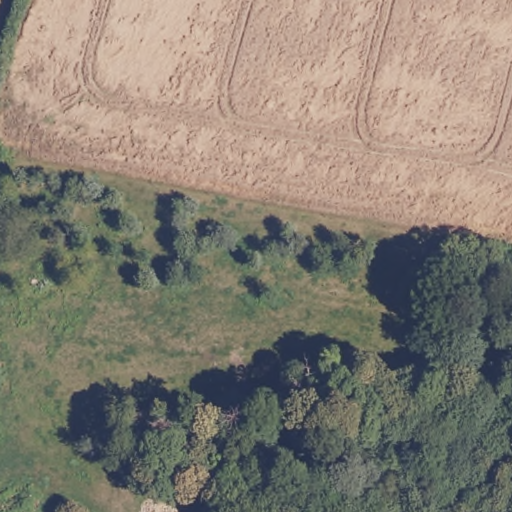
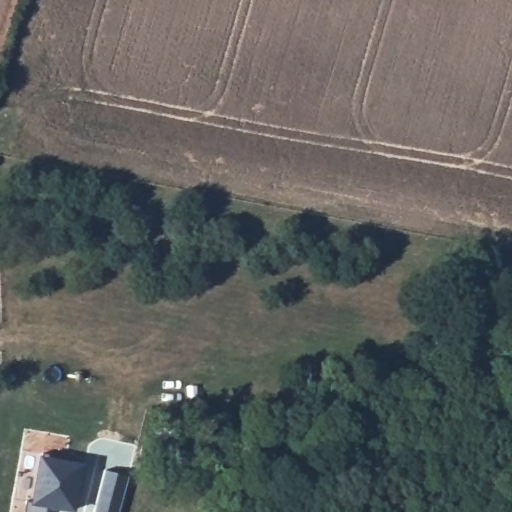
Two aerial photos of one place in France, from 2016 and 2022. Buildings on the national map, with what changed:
new [(50,506),(48,512),(25,512),(27,501),(33,501),(41,457),(83,465),(75,512),(50,506)]
new [(106,471),(128,477),(119,512),(95,512),(106,471)]

